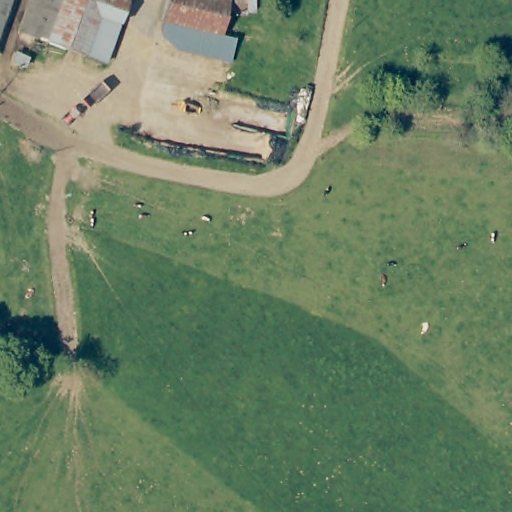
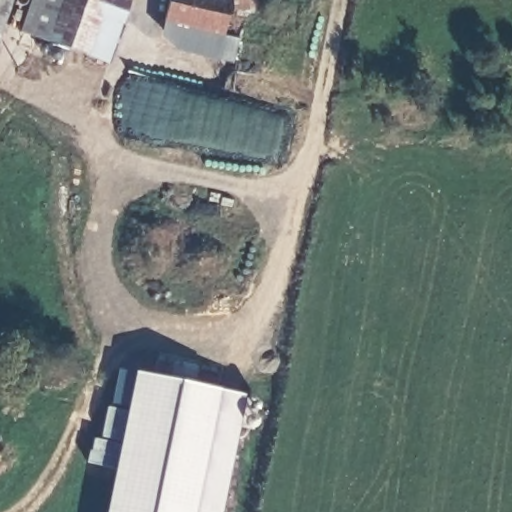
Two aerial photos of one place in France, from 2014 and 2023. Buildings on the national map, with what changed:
unchanged [(26,0),(125,0),(101,67),(95,66),(82,61),(13,36),(26,0)]
unchanged [(161,21),(167,0),(230,0),(229,4),(220,35),(168,22),(161,21)]
unchanged [(233,11),(229,4),(230,0),(254,0),(254,10),(233,11)]
unchanged [(237,39),(232,61),(181,49),(164,37),(168,22),(220,35),(237,39)]
new [(191,512),(110,512),(139,374),(214,391),(191,512)]

